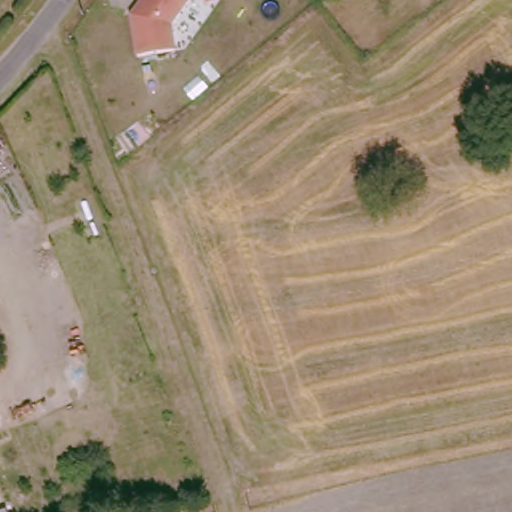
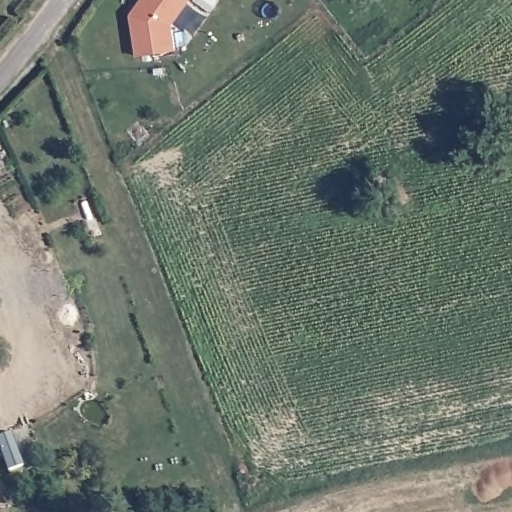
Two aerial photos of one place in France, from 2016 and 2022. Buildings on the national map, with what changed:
unchanged [(168,27),(171,54),(134,57),(130,16),(137,6),(141,0),(187,0),(168,27)]

